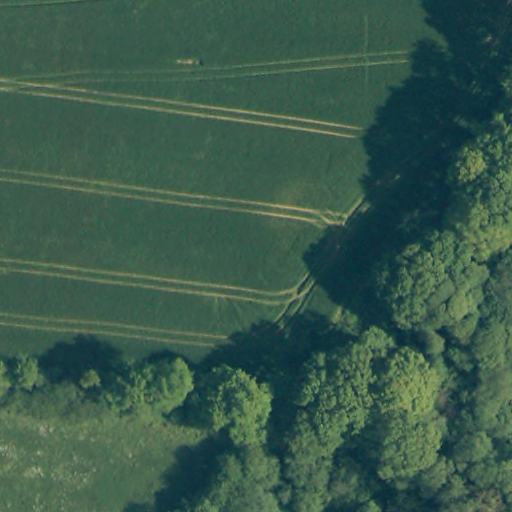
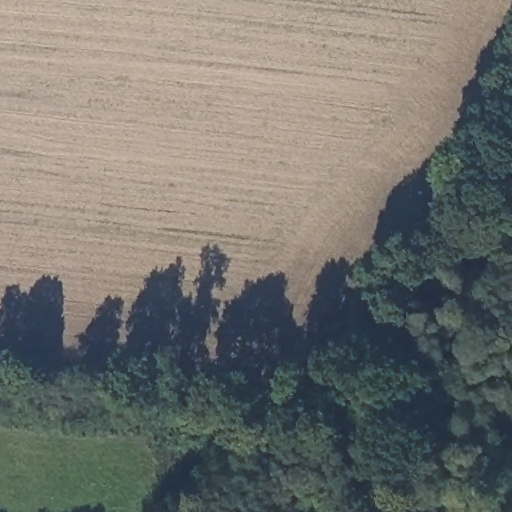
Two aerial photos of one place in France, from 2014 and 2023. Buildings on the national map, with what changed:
[]

